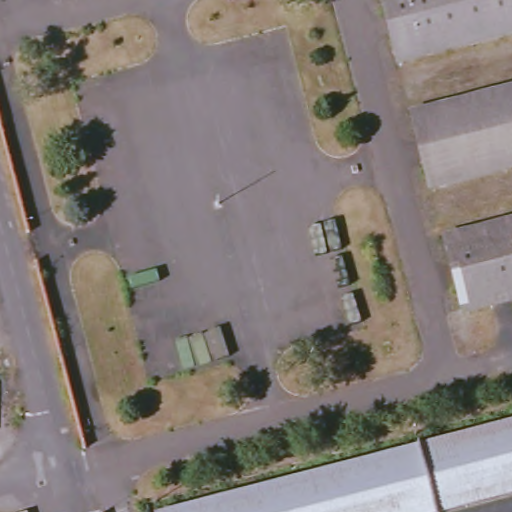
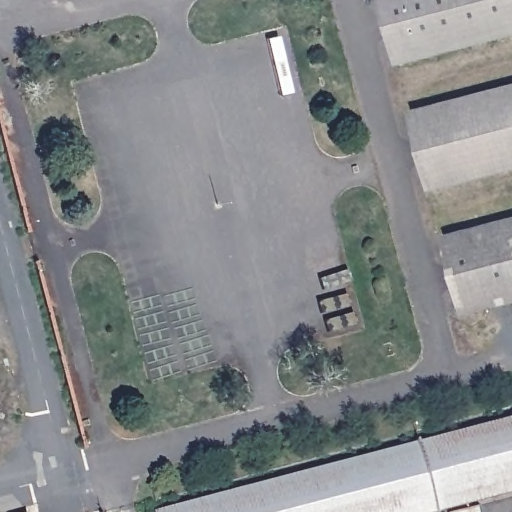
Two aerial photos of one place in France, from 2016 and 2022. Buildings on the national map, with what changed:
unchanged [(384,0),(512,0),(512,29),(399,59),(384,0)]
unchanged [(512,94),(512,164),(436,184),(420,118),(512,94)]
unchanged [(512,227),(512,297),(470,309),(452,243),(512,227)]
unchanged [(512,425),(512,498),(460,512),(180,512),(512,425)]

